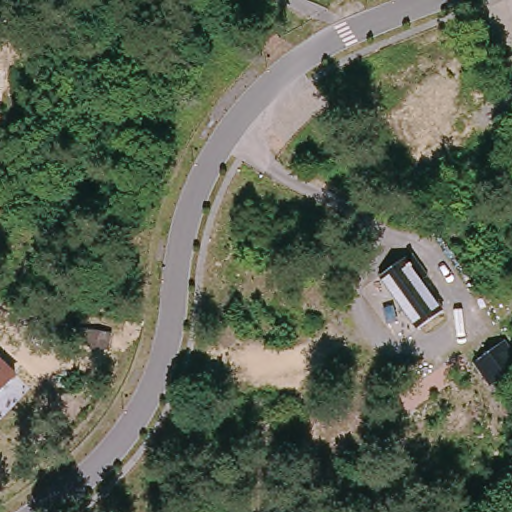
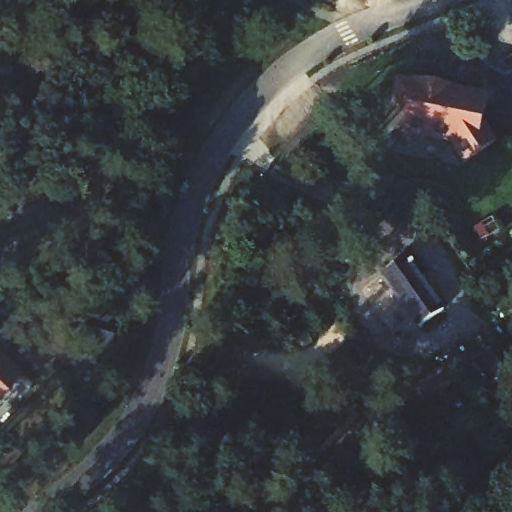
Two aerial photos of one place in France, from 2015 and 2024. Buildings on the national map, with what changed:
new [(466,164),(462,164),(461,162),(457,161),(450,150),(451,146),(449,146),(450,142),(401,133),(406,110),(392,107),(396,81),(410,85),(411,82),(442,87),(441,95),(455,97),(456,95),(485,100),(481,121),(496,141),(466,164)]
unchanged [(381,270),(415,245),(432,267),(422,275),(442,301),(419,321),(381,270)]
unchanged [(489,390),(495,384),(485,369),(479,374),(475,368),(504,347),(507,344),(512,348),(512,349),(507,353),(512,361),(512,377),(491,393),(489,390)]
unchanged [(0,394),(0,355),(18,375),(0,394)]

